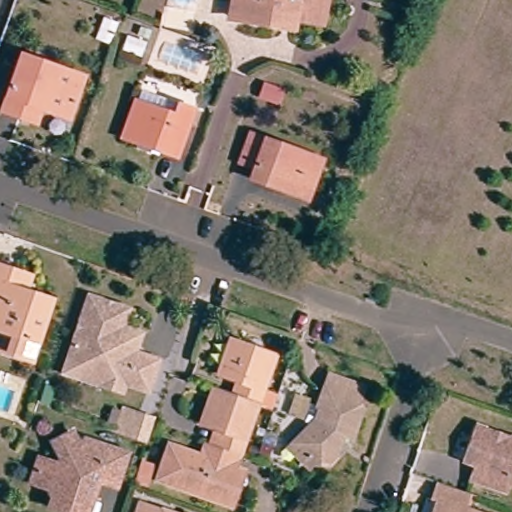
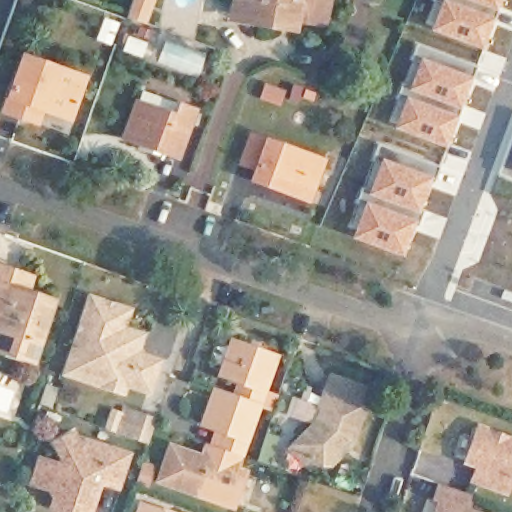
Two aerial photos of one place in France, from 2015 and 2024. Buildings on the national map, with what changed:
new [(147,0),(140,20),(124,15),(129,0),(147,0)]
unchanged [(254,21),(228,17),(230,0),(324,0),(324,5),(315,4),(313,21),(291,19),(290,26),(278,25),(254,21)]
new [(449,0),(494,16),(482,50),(429,30),(439,0),(449,0)]
new [(466,0),(500,0),(496,11),(466,0)]
unchanged [(97,39),(104,18),(119,23),(111,45),(97,39)]
unchanged [(128,36),(147,43),(142,57),(123,50),(128,36)]
unchanged [(19,114),(1,108),(21,52),(82,72),(67,116),(40,107),(36,120),(19,114)]
new [(419,56),(472,76),(460,110),(406,90),(419,56)]
new [(404,95),(458,115),(446,146),(392,127),(404,95)]
unchanged [(178,161),(161,155),(162,150),(126,138),(137,106),(173,118),(177,108),(194,114),(178,161)]
unchanged [(256,168),(257,166),(240,160),(251,131),(314,154),(324,158),(310,196),(300,193),(282,186),(254,176),(256,168)]
new [(379,157),(432,176),(402,256),(350,237),(366,192),(379,157)]
new [(512,167),(512,172),(511,171),(512,167)]
unchanged [(26,274),(38,278),(32,295),(54,303),(34,361),(2,350),(0,349),(0,265),(26,274)]
unchanged [(104,382),(81,375),(64,370),(71,349),(89,294),(129,307),(124,321),(141,327),(134,348),(155,355),(144,386),(124,379),(121,388),(104,382)]
unchanged [(224,432),(205,425),(216,393),(236,400),(242,383),(222,376),(234,342),(278,358),(243,455),(241,455),(219,446),(224,432)]
unchanged [(327,372),(335,375),(363,385),(357,400),(364,409),(353,438),(343,435),(337,442),(342,449),(330,462),(316,464),(293,442),(313,422),(300,416),(307,400),(315,404),(323,383),(327,372)]
unchanged [(291,396),(303,400),(296,419),(284,415),(291,396)]
unchanged [(155,415),(153,418),(146,438),(127,431),(125,431),(118,428),(126,405),(136,408),(154,415),(155,415)]
unchanged [(484,460),(472,455),(482,425),(512,434),(512,485),(480,474),(484,460)]
unchanged [(62,479),(39,471),(47,450),(64,455),(68,447),(63,435),(82,426),(86,437),(91,438),(93,432),(133,446),(123,477),(105,471),(101,483),(97,495),(92,508),(73,502),(56,496),(62,479)]
unchanged [(236,486),(230,505),(157,479),(168,449),(197,459),(203,441),(219,446),(241,455),(236,470),(242,471),(236,486)]
unchanged [(143,468),(154,471),(149,486),(139,482),(143,468)]
unchanged [(438,502),(431,500),(437,481),(467,491),(461,509),(469,512),(435,512),(438,502)]
unchanged [(156,512),(135,512),(137,505),(156,512)]

